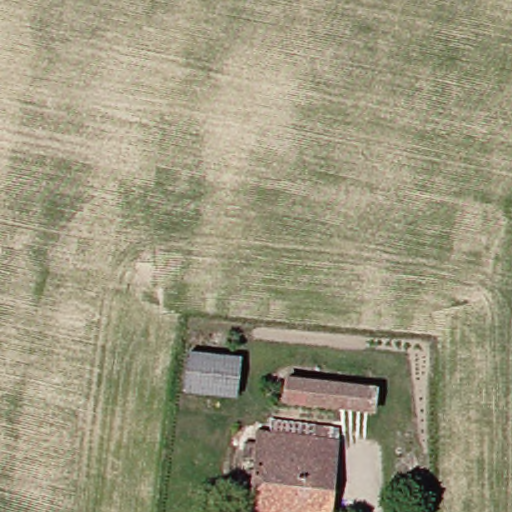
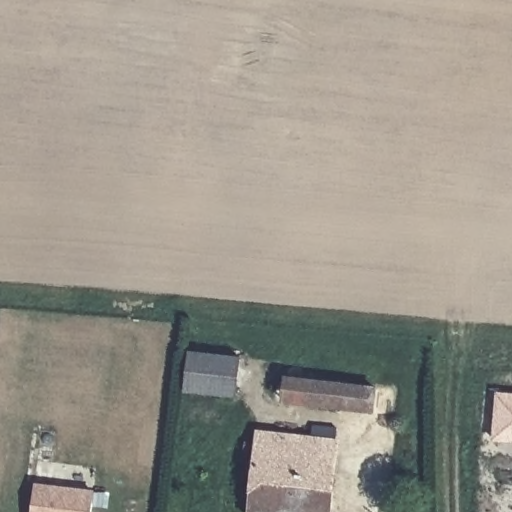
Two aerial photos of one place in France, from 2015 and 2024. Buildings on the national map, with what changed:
unchanged [(229,394),(177,385),(180,351),(233,359),(229,394)]
unchanged [(365,385),(360,415),(270,402),(275,373),(365,385)]
new [(493,440),(496,392),(512,394),(512,441),(493,440)]
unchanged [(321,512),(219,512),(222,491),(234,492),(239,458),(225,457),(226,440),(237,440),(238,429),(266,433),(268,422),(331,430),(321,512)]
new [(94,492),(92,512),(27,512),(31,483),(94,492)]

